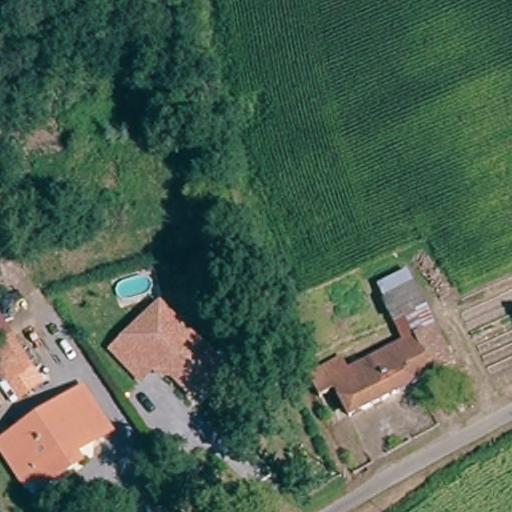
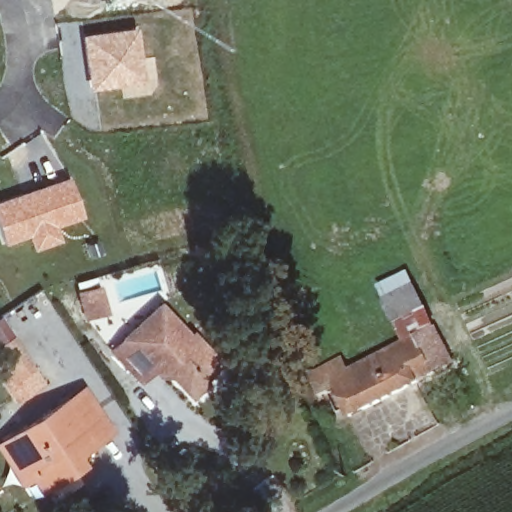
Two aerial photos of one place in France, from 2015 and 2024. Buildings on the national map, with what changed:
new [(144,83),(89,90),(81,35),(137,26),(144,83)]
new [(82,217),(56,227),(59,243),(31,251),(26,237),(4,245),(0,233),(0,200),(68,175),(82,217)]
unchanged [(339,357),(348,368),(401,342),(378,288),(412,271),(459,364),(354,418),(338,395),(317,406),(301,377),(339,357)]
new [(104,313),(99,298),(97,289),(116,283),(119,293),(123,307),(104,313)]
new [(83,318),(79,303),(76,294),(96,289),(98,298),(102,313),(83,318)]
unchanged [(198,398),(188,387),(179,376),(163,374),(151,386),(122,355),(134,344),(132,340),(167,307),(197,338),(200,336),(228,366),(209,384),(211,385),(198,398)]
unchanged [(0,383),(0,316),(43,385),(13,406),(0,383)]
unchanged [(0,444),(0,443),(12,435),(89,389),(118,432),(80,452),(87,463),(74,472),(59,482),(46,490),(39,478),(27,486),(0,444)]

